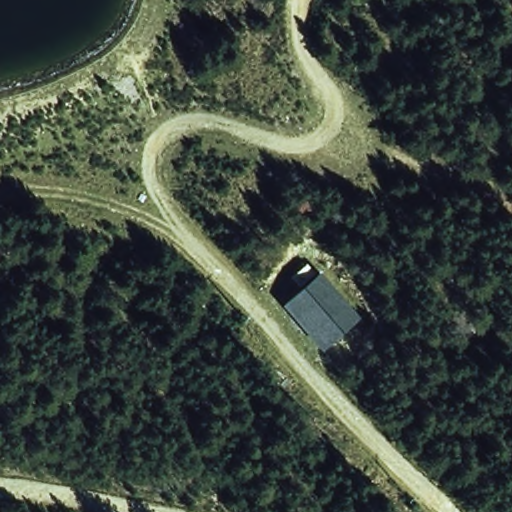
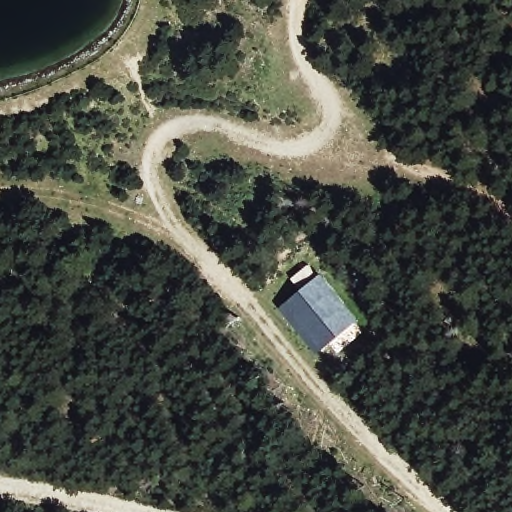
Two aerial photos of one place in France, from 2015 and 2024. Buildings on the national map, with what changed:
unchanged [(277,308),(295,294),(280,277),(305,257),(360,320),(317,356),(277,308)]

